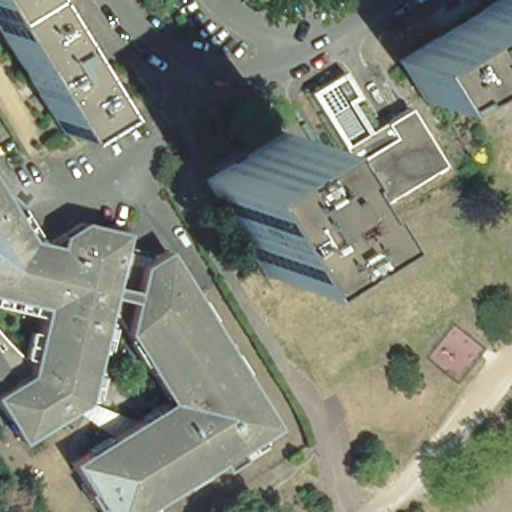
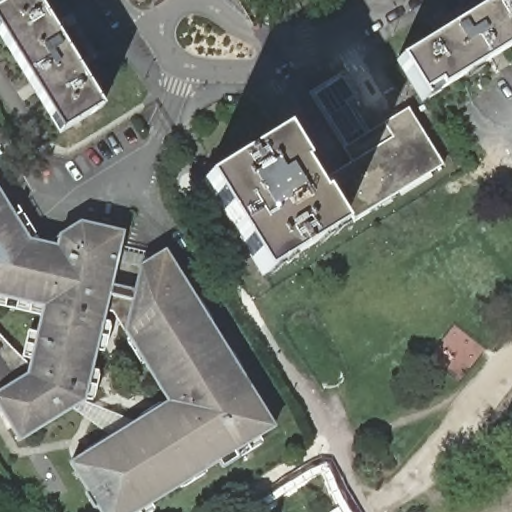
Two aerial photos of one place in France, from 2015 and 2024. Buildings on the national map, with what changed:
unchanged [(0,7),(0,0),(11,0),(0,7)]
unchanged [(11,0),(35,0),(52,29),(79,71),(102,107),(61,134),(58,129),(36,94),(29,82),(0,35),(0,7),(11,0)]
unchanged [(423,101),(398,60),(435,37),(433,32),(437,30),(453,20),(478,5),(481,10),(496,0),(512,0),(512,46),(503,52),(492,59),(423,101)]
unchanged [(351,162),(343,149),(377,127),(383,124),(408,109),(422,130),(439,158),(443,165),(354,220),(336,190),(328,176),(334,173),(351,162)]
unchanged [(217,172),(231,162),(244,155),(282,131),(303,165),(300,166),(312,186),(328,176),(336,190),(323,197),(342,226),(263,275),(210,190),(205,182),(204,180),(217,172)]
unchanged [(0,405),(0,188),(14,211),(21,207),(35,230),(39,237),(46,239),(80,217),(123,228),(117,255),(140,261),(165,246),(274,421),(247,438),(251,445),(222,463),(218,456),(129,512),(103,512),(97,501),(94,502),(83,490),(87,486),(70,458),(111,432),(72,403),(19,435),(0,405)]

